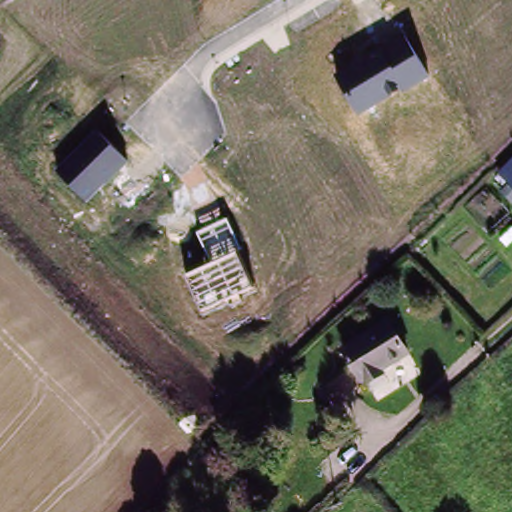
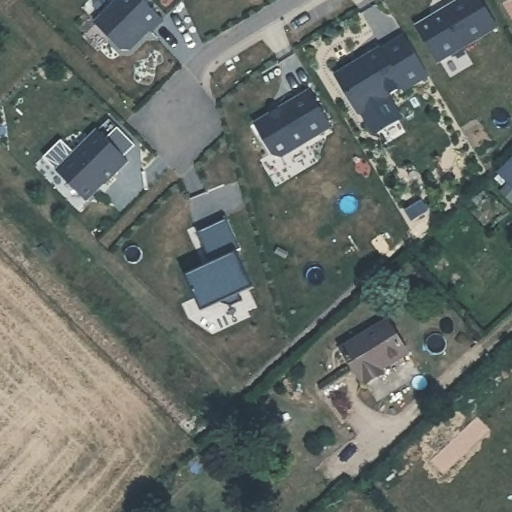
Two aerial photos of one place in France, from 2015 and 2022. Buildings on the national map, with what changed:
new [(142,0),(163,20),(151,32),(148,30),(128,50),(121,50),(94,27),(118,0),(142,0)]
new [(433,19),(434,20),(443,15),(442,14),(465,0),(481,0),(499,29),(439,64),(418,29),(433,19)]
unchanged [(334,70),(403,31),(429,77),(394,100),(392,96),(360,115),(334,70)]
new [(274,115),(274,116),(283,111),(282,110),(313,92),(335,127),(284,158),(278,156),(258,125),(274,115)]
unchanged [(98,129),(128,159),(88,201),(56,169),(98,129)]
unchanged [(512,164),(512,188),(500,175),(512,164)]
unchanged [(186,276),(213,264),(198,232),(228,219),(241,249),(256,286),(202,311),(186,276)]
unchanged [(342,345),(387,320),(405,352),(377,369),(379,373),(363,382),(342,345)]

